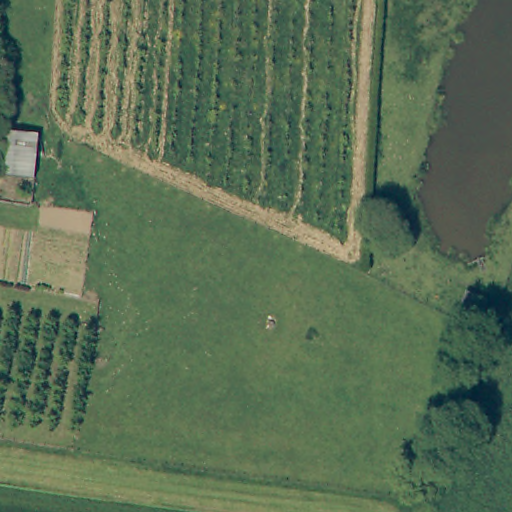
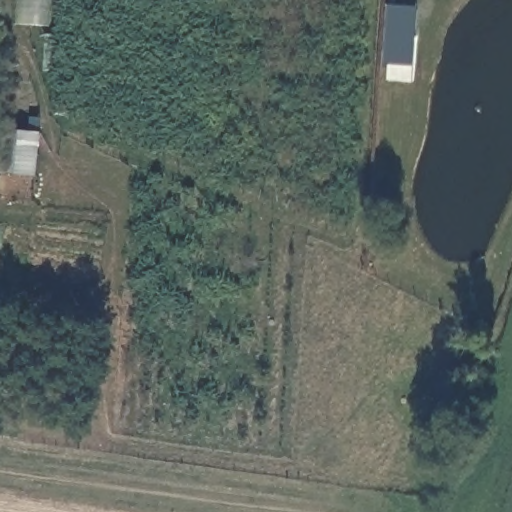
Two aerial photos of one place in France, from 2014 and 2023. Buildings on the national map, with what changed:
new [(415,67),(412,82),(387,81),(389,65),(383,65),(388,6),(419,7),(415,67)]
unchanged [(39,129),(36,172),(0,170),(0,127),(39,129)]

